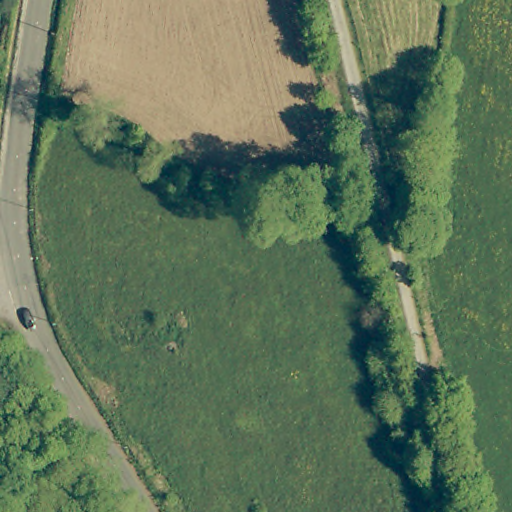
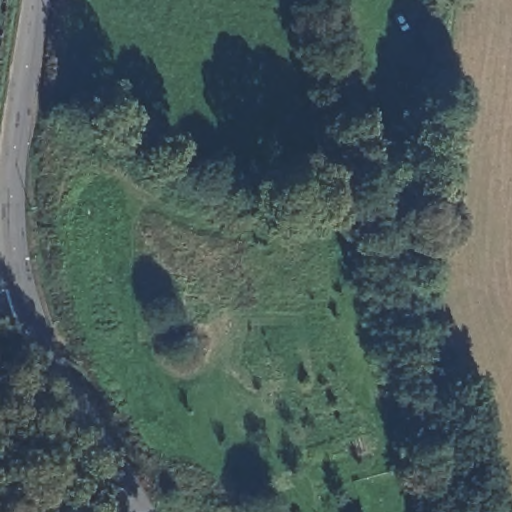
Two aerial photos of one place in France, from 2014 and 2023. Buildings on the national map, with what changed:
[]

